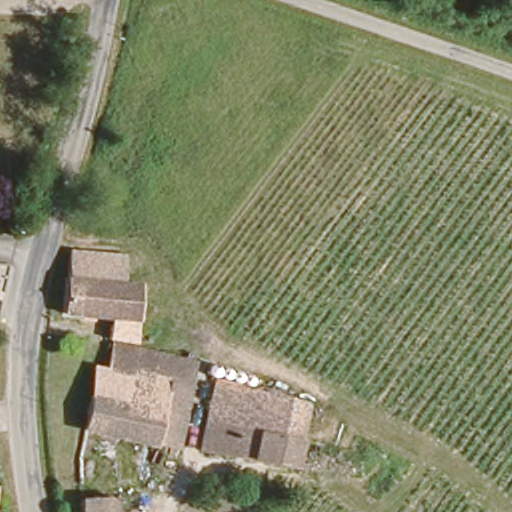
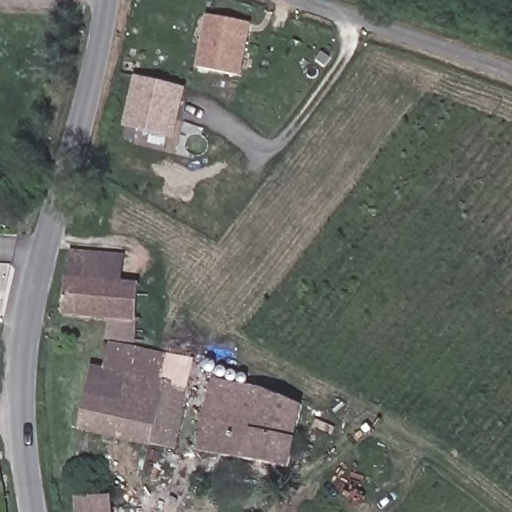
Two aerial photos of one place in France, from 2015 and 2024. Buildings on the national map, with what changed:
new [(248,25),(237,75),(195,66),(207,16),(248,25)]
new [(175,136),(127,125),(138,77),(188,90),(175,136)]
unchanged [(70,246),(87,250),(114,255),(109,282),(100,280),(66,271),(70,246)]
unchanged [(55,311),(57,293),(62,294),(66,271),(100,280),(109,282),(140,290),(129,345),(115,342),(118,325),(60,312),(55,311)]
unchanged [(132,352),(154,356),(191,362),(182,448),(84,435),(90,404),(97,373),(110,375),(118,350),(132,352)]
unchanged [(227,385),(304,404),(292,467),(237,457),(239,442),(216,437),(224,384),(227,385)]
unchanged [(70,501),(116,502),(116,512),(71,512),(70,501)]

